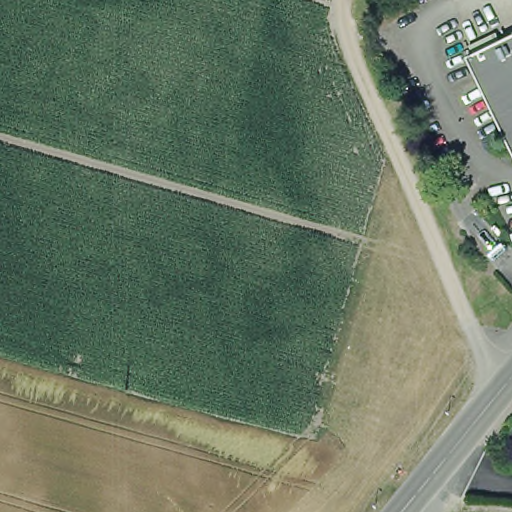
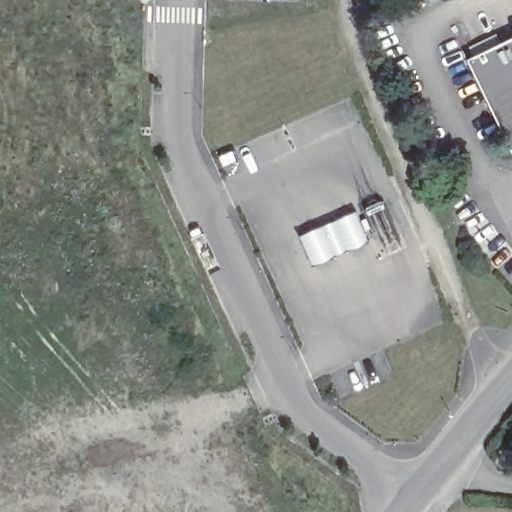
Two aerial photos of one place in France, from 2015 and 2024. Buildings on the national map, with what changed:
unchanged [(512,37),(512,56),(485,48),(512,37)]
unchanged [(466,56),(485,48),(512,56),(512,119),(493,113),(466,56)]
unchanged [(512,119),(512,153),(493,113),(512,119)]
new [(306,233),(356,211),(369,241),(320,263),(306,233)]

